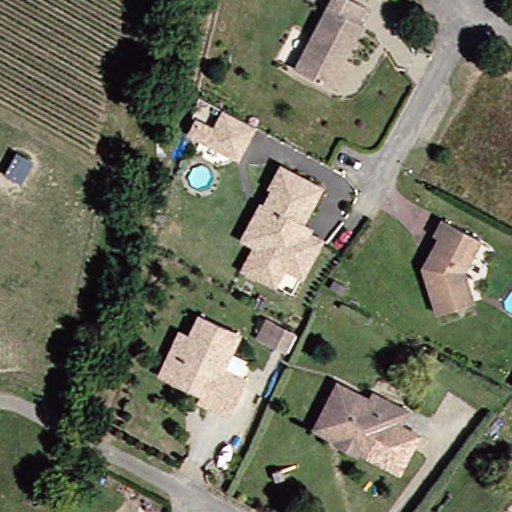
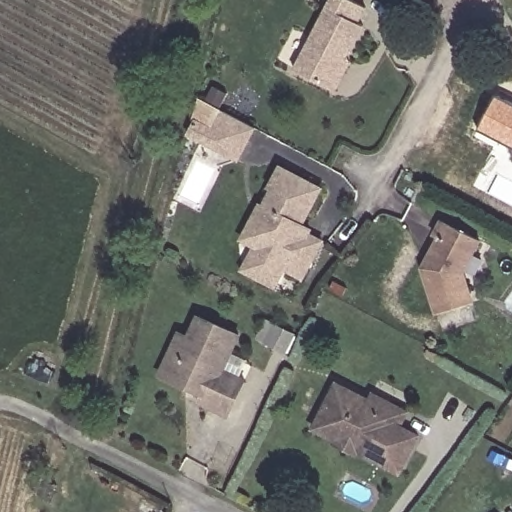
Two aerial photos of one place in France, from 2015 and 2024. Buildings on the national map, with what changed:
unchanged [(330,0),(359,0),(366,4),(359,20),(364,24),(347,58),(352,60),(338,90),(332,88),(296,69),(330,0)]
new [(481,129),(497,95),(512,103),(512,145),(481,129)]
unchanged [(214,126),(220,112),(255,126),(239,159),(182,139),(190,118),(214,126)]
unchanged [(262,204),(267,207),(274,191),(270,189),(282,168),(323,189),(299,235),(307,239),(309,234),(324,243),(304,280),(284,269),(289,260),(277,253),(274,258),(255,248),(243,240),(262,204)]
unchanged [(433,232),(441,217),(479,237),(463,268),(471,300),(434,310),(422,266),(438,234),(433,232)]
unchanged [(166,376),(178,354),(173,351),(180,332),(190,337),(200,314),(242,335),(225,369),(246,381),(229,419),(199,403),(204,394),(189,387),(166,376)]
unchanged [(334,444),(335,443),(303,427),(325,381),(359,397),(362,390),(399,408),(391,424),(384,437),(376,433),(367,451),(363,458),(344,449),(334,444)]
unchanged [(504,507),(510,512),(499,512),(504,507)]

